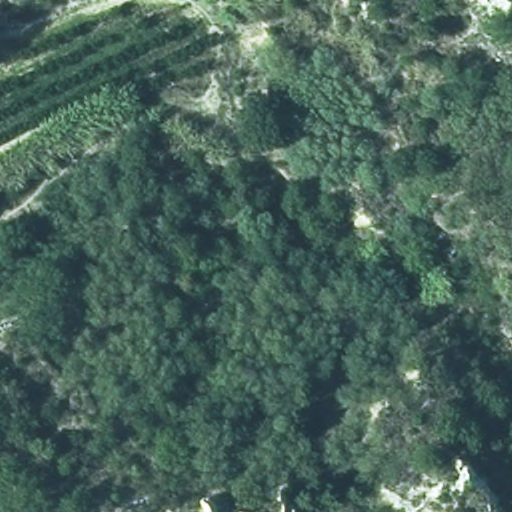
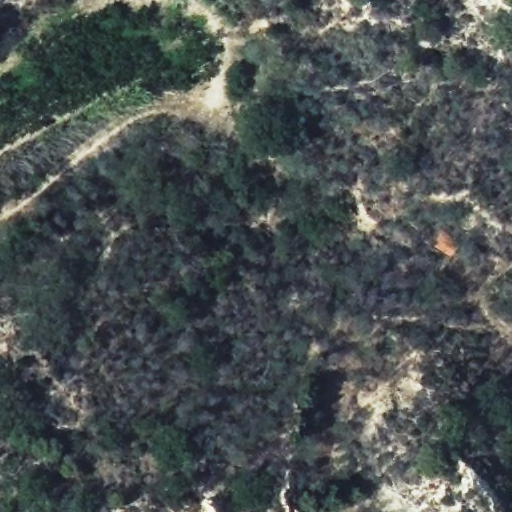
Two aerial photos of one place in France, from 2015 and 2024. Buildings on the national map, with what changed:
unchanged [(459,244),(449,256),(432,246),(442,229),(459,244)]

